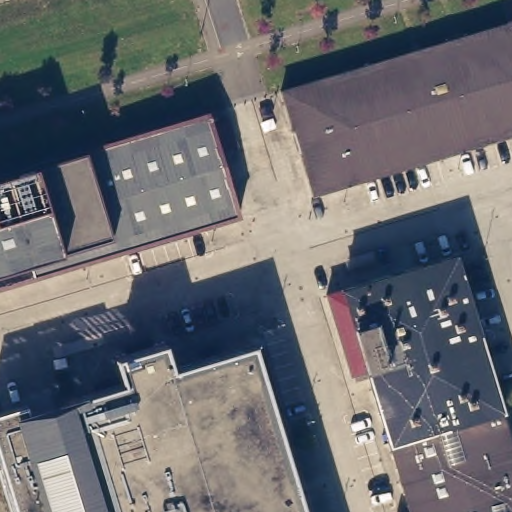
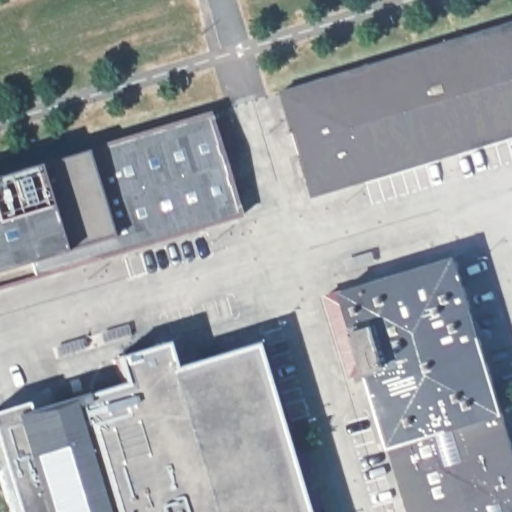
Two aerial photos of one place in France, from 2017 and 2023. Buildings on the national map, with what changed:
unchanged [(281,86),(512,17),(512,131),(314,191),(281,86)]
unchanged [(98,240),(69,151),(193,113),(226,217),(30,276),(28,265),(98,240)]
unchanged [(98,240),(28,265),(30,276),(0,286),(0,172),(69,151),(98,240)]
unchanged [(456,246),(477,317),(501,398),(389,436),(374,440),(361,399),(376,393),(366,361),(351,365),(327,284),(456,246)]
unchanged [(477,317),(509,306),(512,314),(512,512),(395,512),(395,511),(411,506),(389,436),(501,398),(477,317)]
unchanged [(0,464),(0,411),(25,403),(31,420),(58,412),(68,408),(66,401),(97,392),(122,384),(114,359),(166,343),(173,368),(255,344),(285,446),(292,467),(304,463),(318,509),(309,512),(14,512),(13,509),(0,464)]

